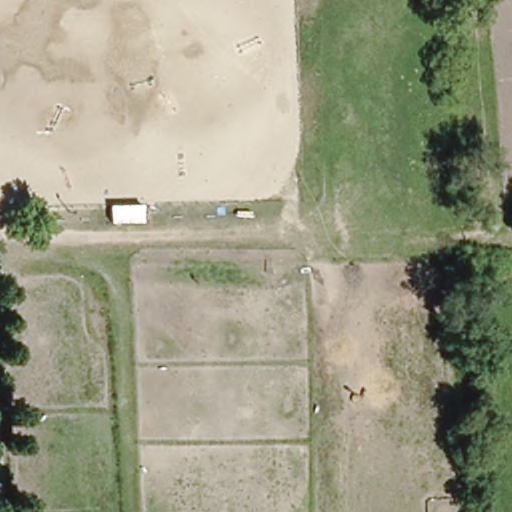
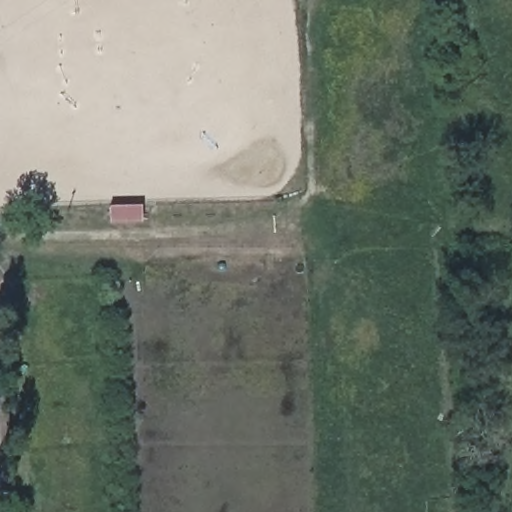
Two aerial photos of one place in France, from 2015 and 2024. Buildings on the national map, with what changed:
unchanged [(130,205),(130,222),(96,223),(95,206),(130,205)]

